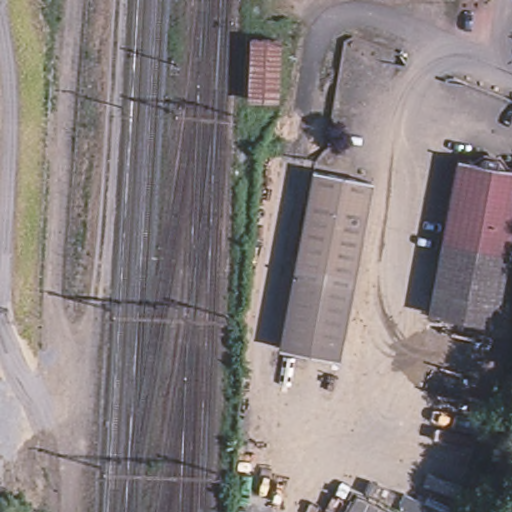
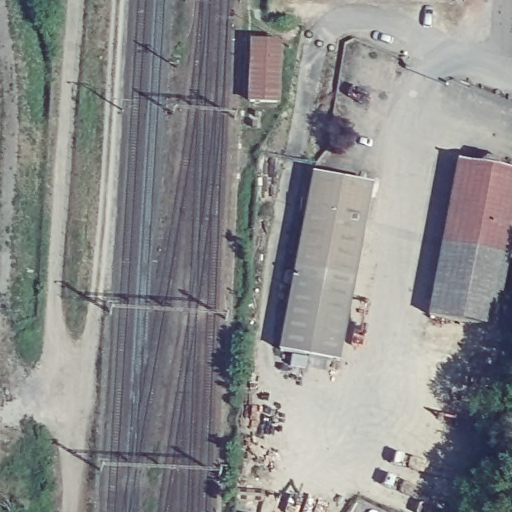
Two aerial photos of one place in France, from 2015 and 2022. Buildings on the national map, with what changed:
unchanged [(278,44),(275,105),(249,103),(252,42),(278,44)]
unchanged [(493,334),(426,321),(454,167),(473,171),(482,165),(496,168),(502,176),(512,178),(512,229),(493,334)]
unchanged [(372,189),(339,365),(280,353),(313,177),(372,189)]

